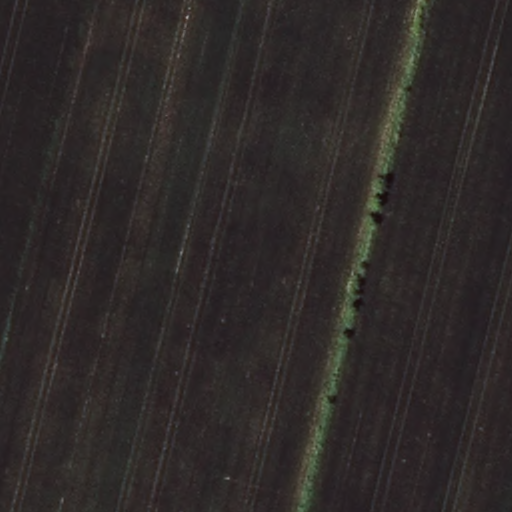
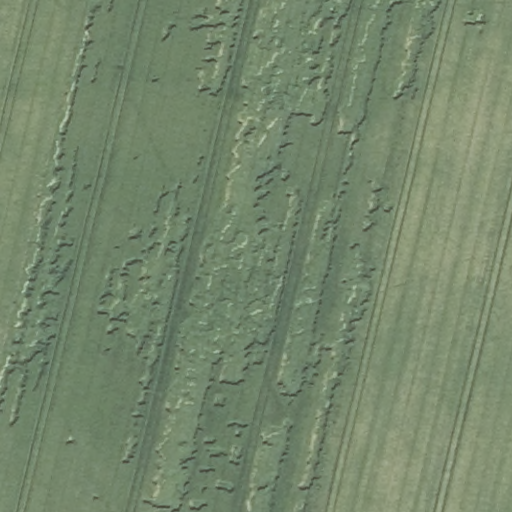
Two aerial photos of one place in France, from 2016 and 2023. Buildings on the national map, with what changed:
[]

